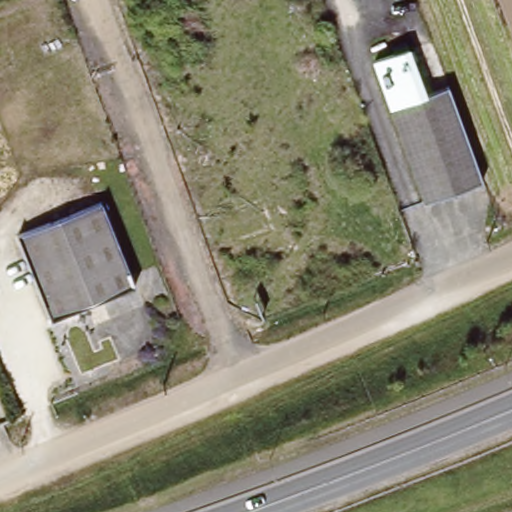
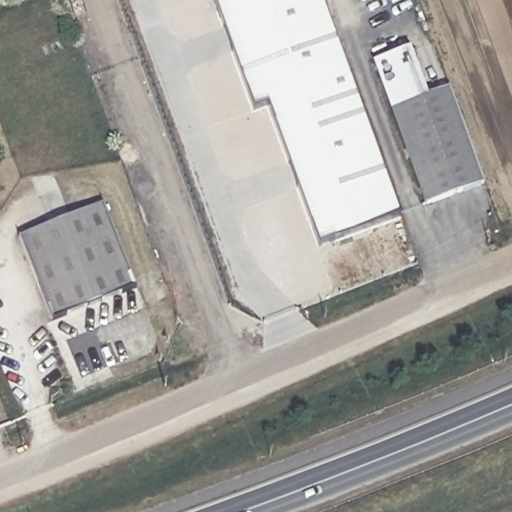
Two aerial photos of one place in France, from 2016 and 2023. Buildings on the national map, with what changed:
new [(267,102),(251,108),(214,0),(321,0),(400,216),(318,245),(267,102)]
unchanged [(410,50),(425,94),(391,107),(375,62),(410,50)]
unchanged [(467,134),(485,182),(426,203),(391,107),(450,85),(467,134)]
unchanged [(102,205),(133,289),(91,305),(61,220),(102,205)]
unchanged [(61,220),(91,305),(75,310),(44,226),(61,220)]
unchanged [(75,310),(48,320),(17,236),(44,226),(75,310)]

